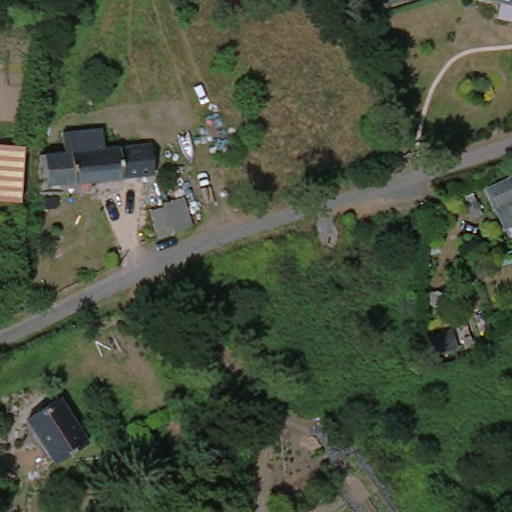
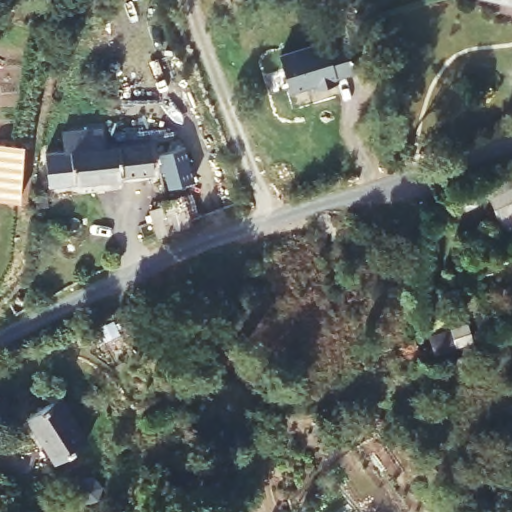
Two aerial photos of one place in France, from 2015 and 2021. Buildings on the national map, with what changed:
unchanged [(512,12),(473,0),(512,0),(512,12)]
new [(327,41),(328,49),(346,44),(355,74),(338,77),(339,82),(315,90),(313,84),(290,91),(280,54),(327,41)]
unchanged [(148,184),(45,192),(42,162),(58,161),(57,139),(97,135),(101,157),(145,152),(148,184)]
unchanged [(25,159),(15,210),(0,208),(0,154),(25,159)]
unchanged [(480,188),(507,179),(512,191),(512,228),(498,234),(480,188)]
unchanged [(190,231),(155,243),(145,215),(157,211),(156,208),(180,200),(190,231)]
unchanged [(64,402),(92,446),(54,467),(28,422),(64,402)]

